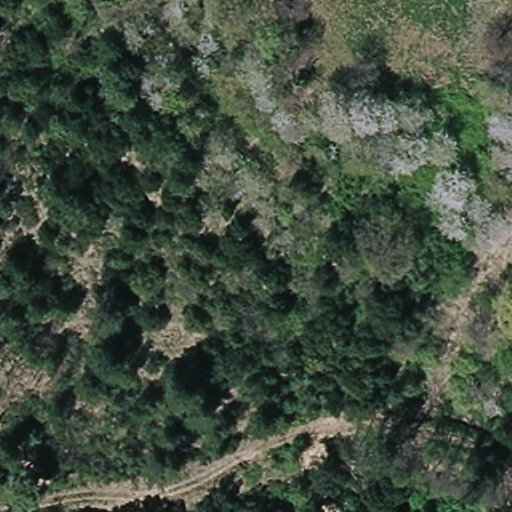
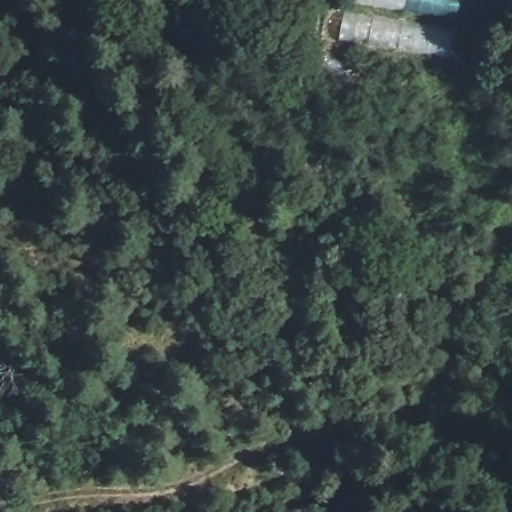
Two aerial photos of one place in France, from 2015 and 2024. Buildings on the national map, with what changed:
new [(350,13),(353,0),(461,0),(449,58),(340,38),(344,12),(350,13)]

